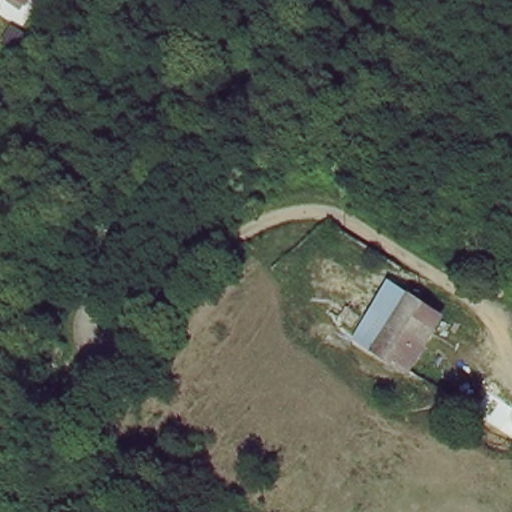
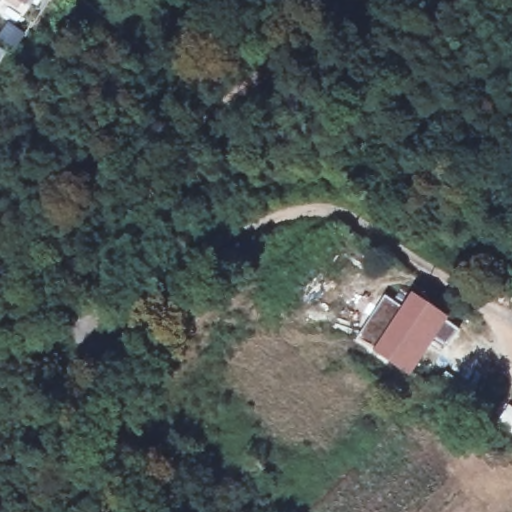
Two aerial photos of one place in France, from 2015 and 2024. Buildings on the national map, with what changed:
unchanged [(392,282),(443,309),(411,372),(359,347),(392,282)]

